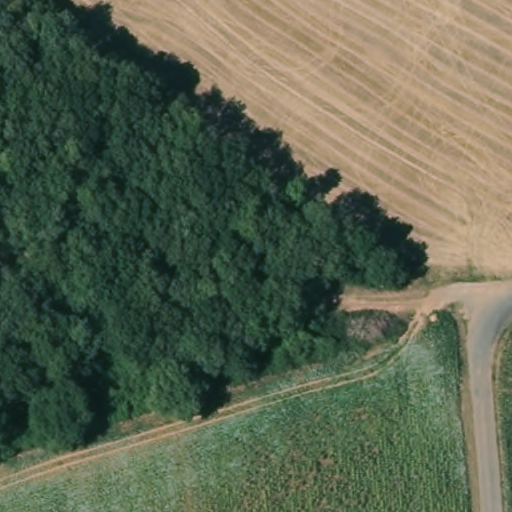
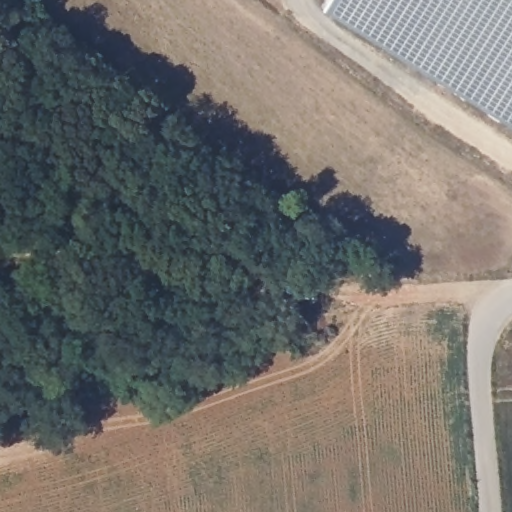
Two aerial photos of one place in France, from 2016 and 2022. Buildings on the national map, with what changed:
new [(331,0),(512,0),(512,123),(326,8),(331,0)]

